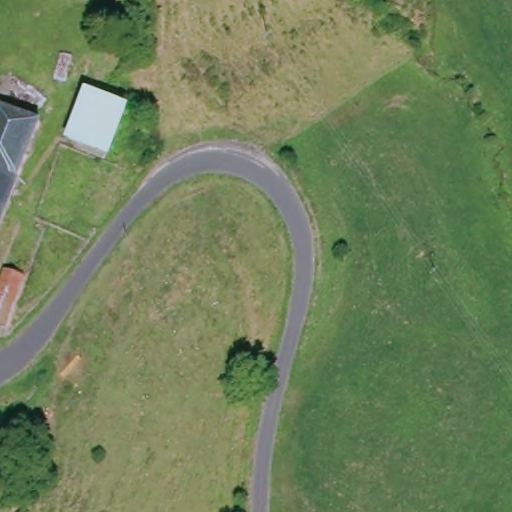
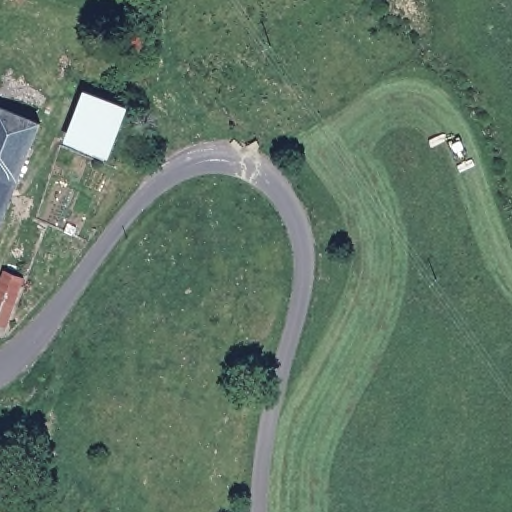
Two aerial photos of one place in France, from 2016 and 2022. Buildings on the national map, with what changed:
unchanged [(122,115),(106,161),(68,148),(79,114),(83,102),(95,105),(122,115)]
unchanged [(39,132),(17,187),(0,182),(0,117),(39,132)]
unchanged [(17,187),(0,229),(0,182),(17,187)]
unchanged [(3,329),(0,329),(0,276),(1,272),(21,279),(3,329)]

